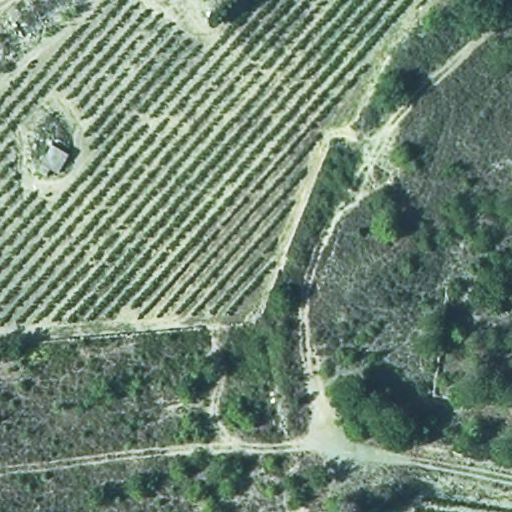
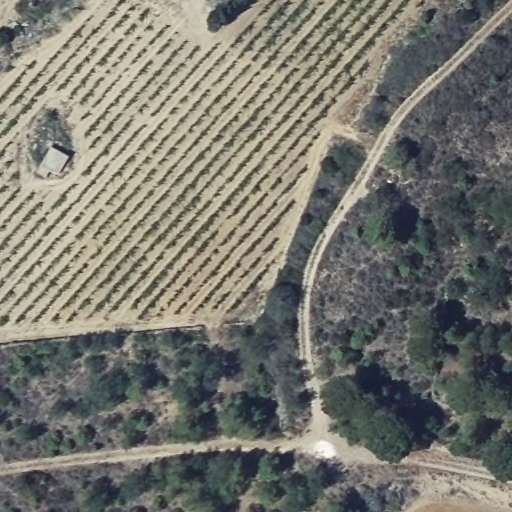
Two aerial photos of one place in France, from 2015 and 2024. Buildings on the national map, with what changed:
unchanged [(50,146),(68,157),(54,174),(35,164),(50,146)]

